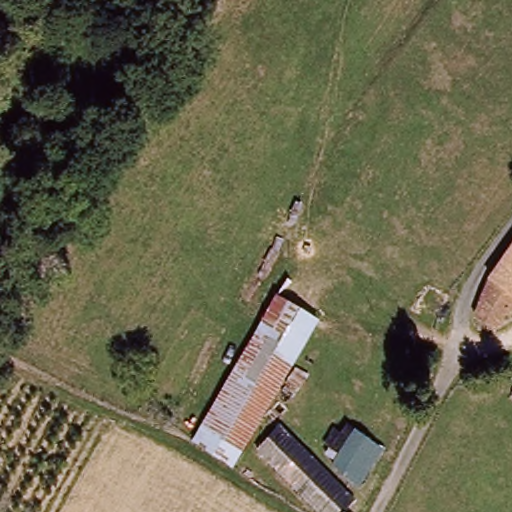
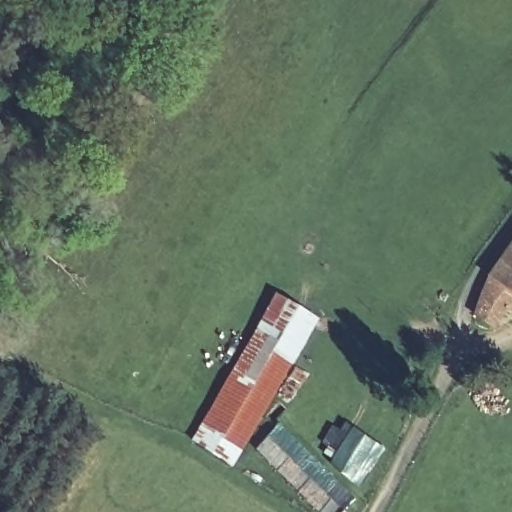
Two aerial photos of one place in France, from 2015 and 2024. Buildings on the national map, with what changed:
unchanged [(512,243),(512,303),(494,330),(473,318),(487,280),(512,243)]
unchanged [(233,471),(192,442),(277,294),(323,321),(233,471)]
unchanged [(341,512),(314,512),(257,452),(281,425),(356,499),(341,512)]
unchanged [(363,485),(335,466),(358,429),(386,447),(363,485)]

